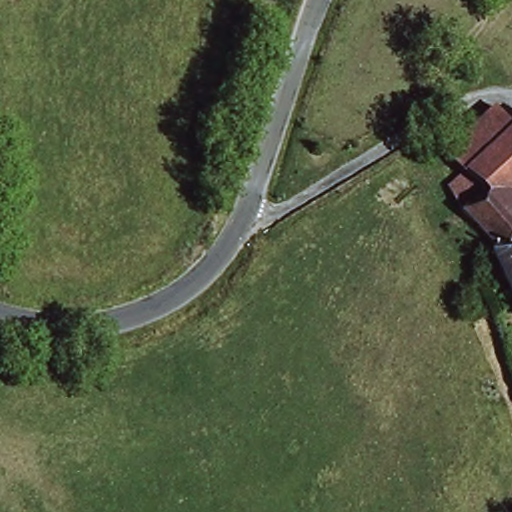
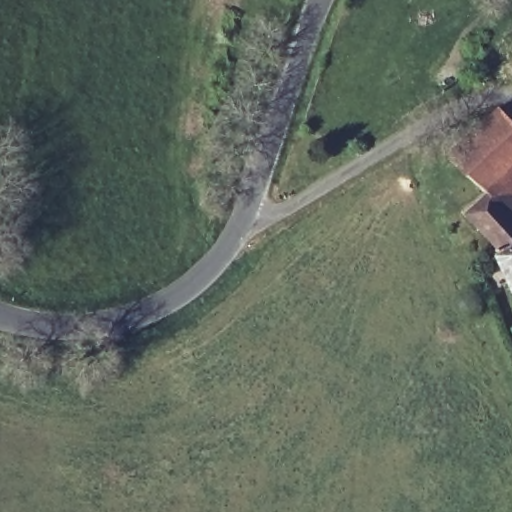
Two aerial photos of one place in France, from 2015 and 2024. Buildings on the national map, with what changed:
unchanged [(512,208),(512,307),(485,253),(490,250),(460,222),(443,193),(461,177),(441,155),(488,113),(490,111),(512,133),(512,196),(507,201),(512,208)]

